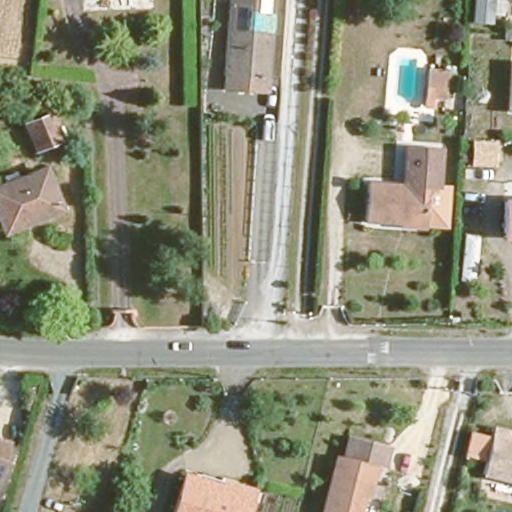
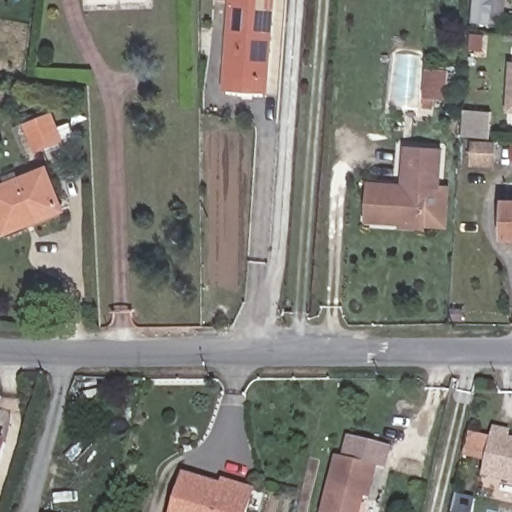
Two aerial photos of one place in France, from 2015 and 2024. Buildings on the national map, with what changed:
unchanged [(222,0),(275,0),(270,88),(216,84),(222,0)]
unchanged [(470,23),(472,0),(503,0),(504,14),(494,13),(492,24),(470,23)]
unchanged [(512,114),(508,113),(510,62),(512,62),(512,114)]
unchanged [(425,93),(423,67),(448,66),(450,92),(425,93)]
unchanged [(41,149),(30,123),(54,113),(64,141),(41,149)]
unchanged [(496,167),(471,167),(472,140),(499,141),(496,167)]
unchanged [(362,220),(364,182),(404,185),(406,142),(440,145),(438,187),(430,186),(428,224),(362,220)]
unchanged [(0,224),(0,181),(47,165),(61,204),(37,213),(1,226),(0,224)]
unchanged [(505,194),(512,195),(512,236),(502,235),(505,194)]
unchanged [(487,462),(464,457),(470,432),(497,437),(501,428),(512,432),(512,481),(483,471),(487,462)]
unchanged [(11,440),(1,486),(0,486),(0,437),(11,440)]
unchanged [(352,512),(318,512),(333,458),(348,462),(354,440),(388,449),(382,472),(377,471),(366,509),(353,506),(352,512)]
unchanged [(204,475),(202,484),(222,488),(224,480),(256,489),(251,512),(174,512),(185,470),(204,475)]

